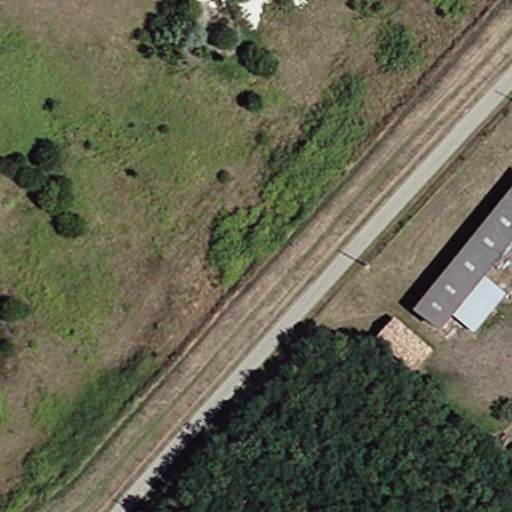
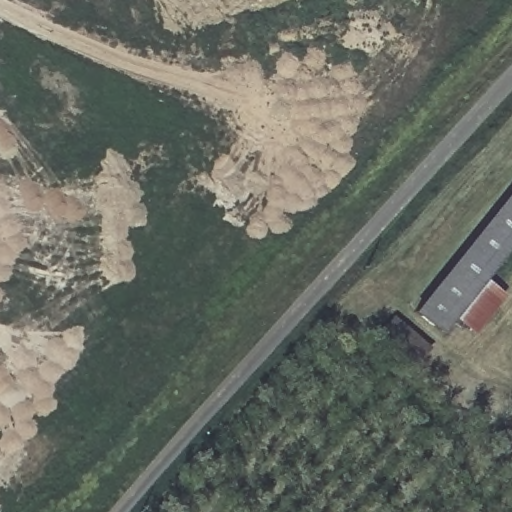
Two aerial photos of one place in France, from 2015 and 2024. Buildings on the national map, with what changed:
unchanged [(436,334),(412,313),(512,194),(512,239),(436,334)]
unchanged [(489,282),(509,299),(477,336),(457,323),(489,282)]
unchanged [(425,352),(407,371),(374,339),(392,320),(425,352)]

